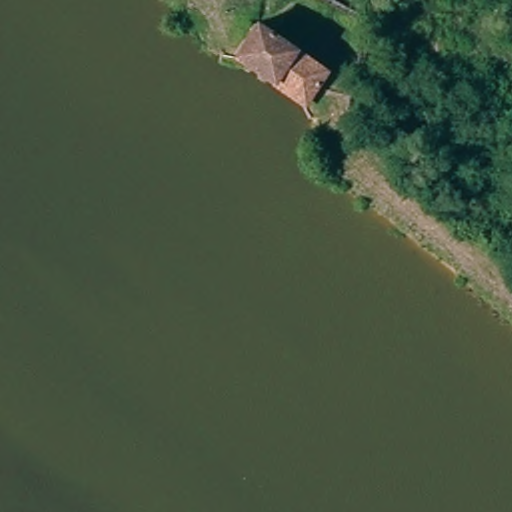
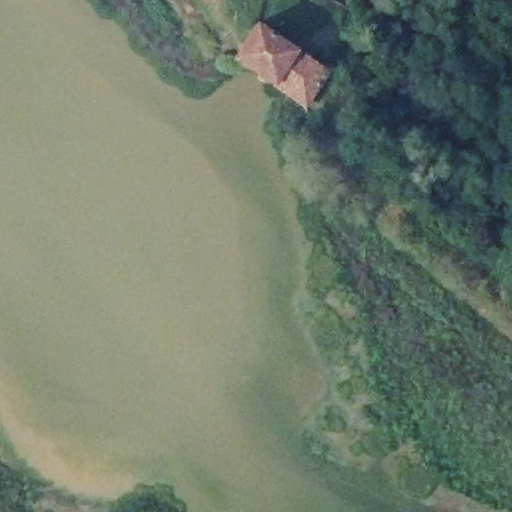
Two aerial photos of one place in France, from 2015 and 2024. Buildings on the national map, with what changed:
unchanged [(262,20),(331,66),(309,105),(240,56),(262,20)]

